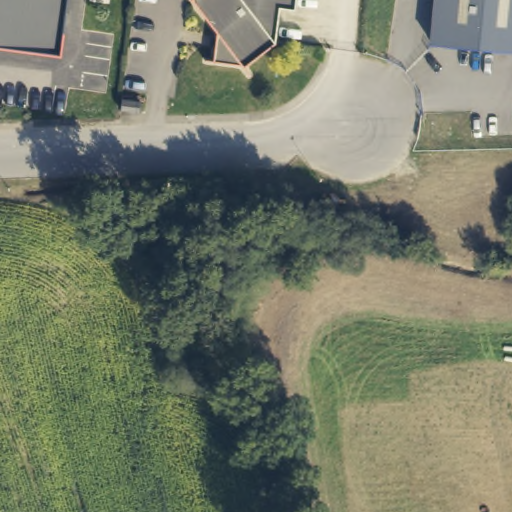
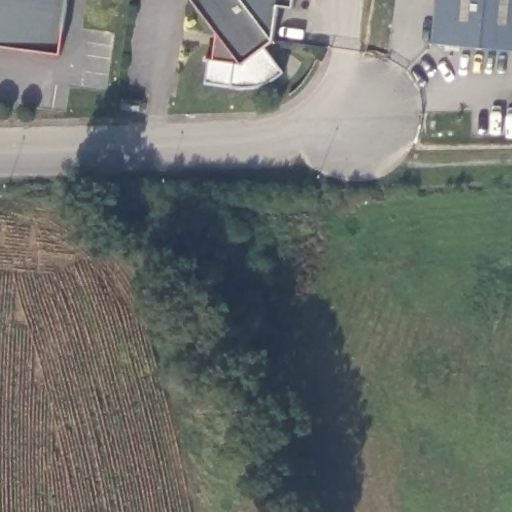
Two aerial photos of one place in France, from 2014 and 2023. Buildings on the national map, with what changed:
unchanged [(0,48),(0,0),(67,0),(60,55),(0,48)]
unchanged [(279,8),(274,43),(242,67),(213,62),(216,33),(187,4),(192,0),(294,0),(293,9),(279,8)]
unchanged [(436,0),(512,0),(512,56),(432,48),(436,0)]
unchanged [(137,98),(136,109),(117,107),(119,96),(137,98)]

